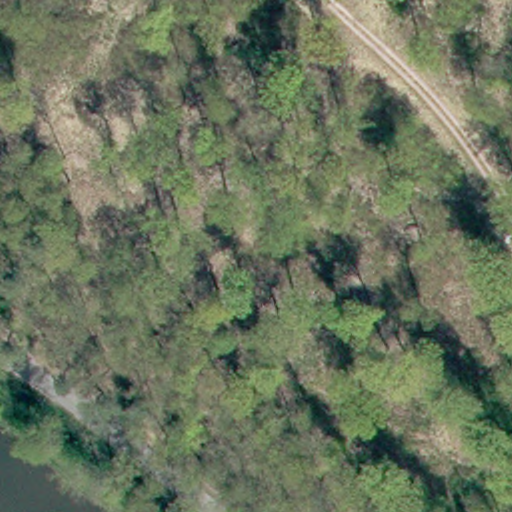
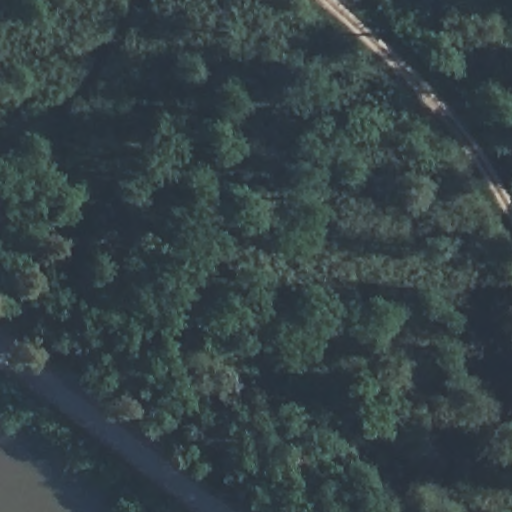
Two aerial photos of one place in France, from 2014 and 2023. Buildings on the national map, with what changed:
[]

